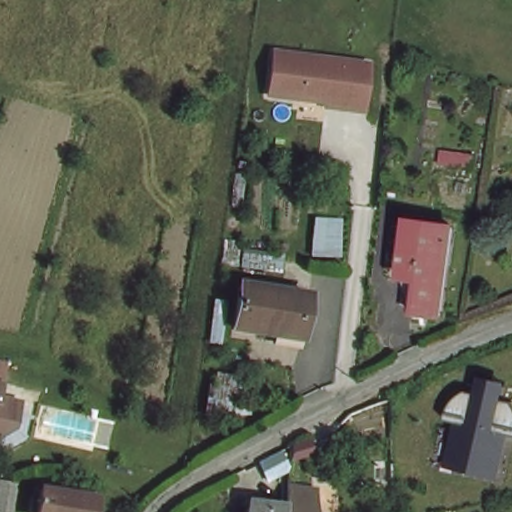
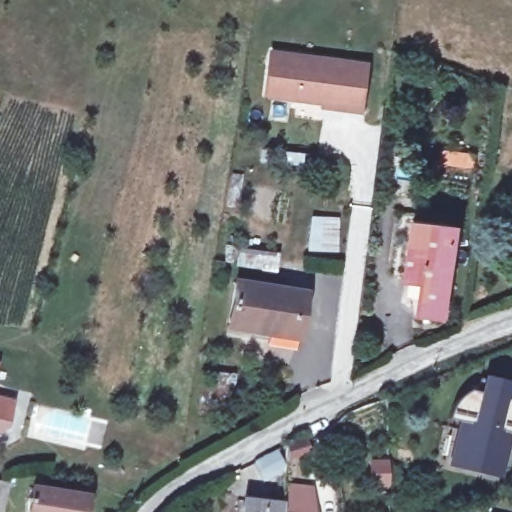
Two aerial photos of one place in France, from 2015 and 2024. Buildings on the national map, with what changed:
unchanged [(362,59),(357,106),(320,102),(320,98),(262,92),(267,48),(362,59)]
unchanged [(335,251),(299,247),(305,205),(340,210),(335,251)]
unchanged [(421,311),(426,277),(409,276),(416,220),(456,225),(447,312),(421,311)]
unchanged [(303,294),(297,338),(227,327),(234,283),(303,294)]
unchanged [(480,392),(484,377),(511,383),(507,401),(512,401),(512,437),(505,479),(451,466),(460,421),(451,417),(460,399),(471,392),(480,392)]
unchanged [(3,405),(0,419),(0,397),(5,398),(3,405)]
unchanged [(0,488),(0,477),(2,477),(0,488)]
unchanged [(282,502),(282,496),(282,492),(282,485),(307,482),(308,489),(310,488),(312,512),(281,512),(282,502)]
unchanged [(34,490),(88,498),(86,512),(30,512),(34,490)]
unchanged [(244,497),(274,501),(282,502),(281,512),(242,512),(244,497)]

